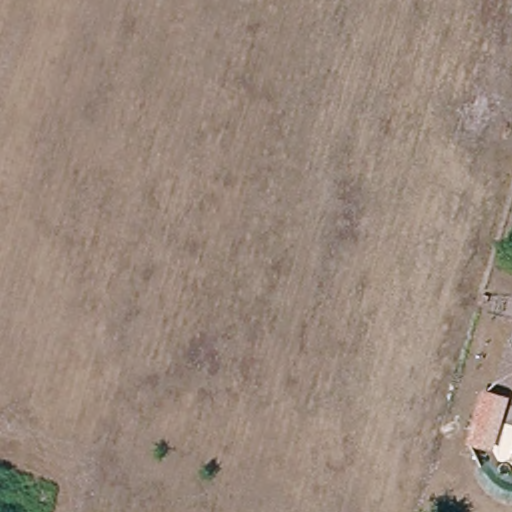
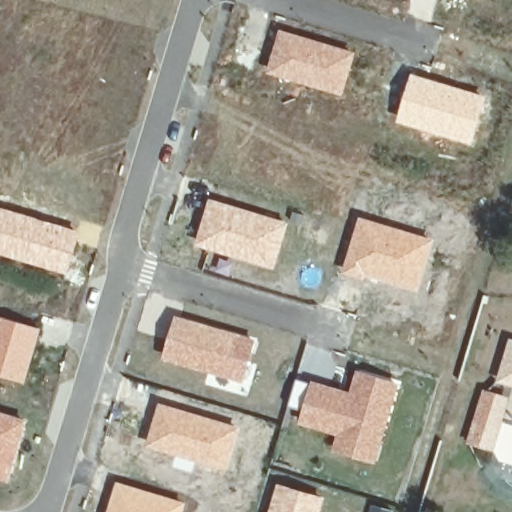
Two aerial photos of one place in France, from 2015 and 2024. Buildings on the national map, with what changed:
new [(344,96),(268,73),(280,29),(357,52),(344,96)]
new [(474,142),(398,121),(412,73),(487,95),(474,142)]
new [(291,222),(277,267),(226,253),(209,237),(220,201),(291,222)]
new [(0,253),(0,206),(81,230),(69,273),(0,253)]
new [(419,290),(366,275),(365,279),(343,273),(360,216),(435,239),(419,290)]
new [(244,382),(164,357),(176,315),(257,338),(244,382)]
new [(0,376),(0,316),(42,328),(26,383),(0,376)]
unchanged [(492,382),(504,345),(512,348),(512,389),(492,382)]
new [(300,423),(312,380),(350,392),(357,370),(400,382),(376,464),(333,451),(337,435),(300,423)]
new [(229,470),(147,446),(160,402),(242,427),(229,470)]
new [(0,479),(0,411),(28,420),(10,482),(0,479)]
unchanged [(502,420),(494,440),(474,432),(482,412),(502,420)]
new [(108,512),(118,481),(187,502),(184,512),(108,512)]
new [(320,512),(269,512),(278,482),(302,489),(325,496),(320,512)]

